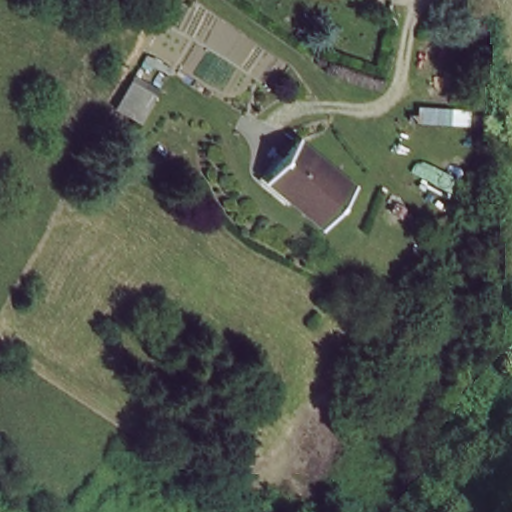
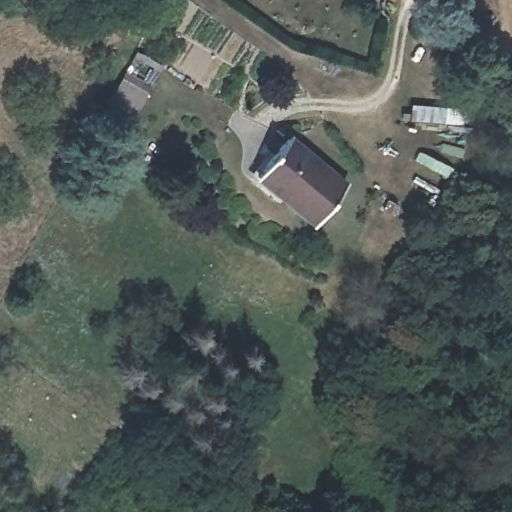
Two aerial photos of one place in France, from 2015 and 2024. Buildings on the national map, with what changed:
unchanged [(107,113),(126,82),(149,95),(133,129),(107,113)]
unchanged [(346,186),(318,228),(254,188),(281,144),(346,186)]

